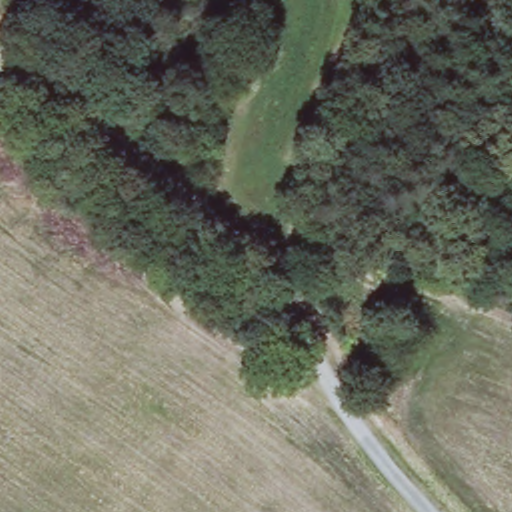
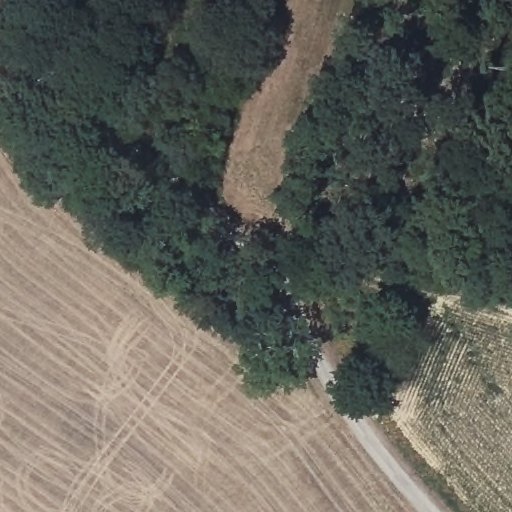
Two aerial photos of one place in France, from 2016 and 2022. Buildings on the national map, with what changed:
[]

